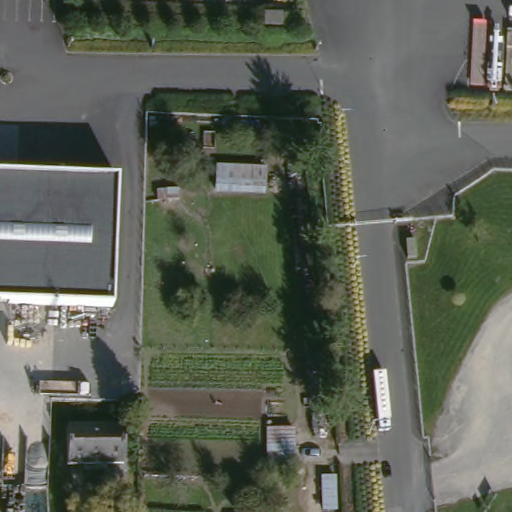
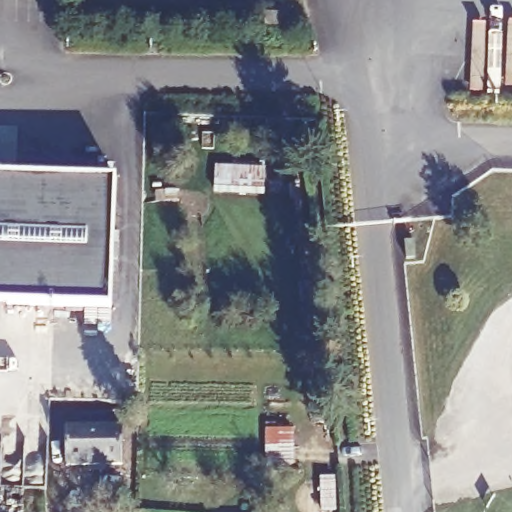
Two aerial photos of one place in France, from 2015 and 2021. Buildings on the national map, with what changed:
unchanged [(281,13),(281,26),(264,25),(264,13),(281,13)]
unchanged [(267,164),(265,203),(211,196),(213,164),(267,164)]
unchanged [(0,175),(116,179),(111,309),(0,305),(0,175)]
unchanged [(414,241),(415,258),(406,259),(405,242),(414,241)]
unchanged [(71,428),(127,427),(128,464),(72,465),(71,428)]
unchanged [(292,470),(267,469),(267,434),(292,434),(292,470)]

